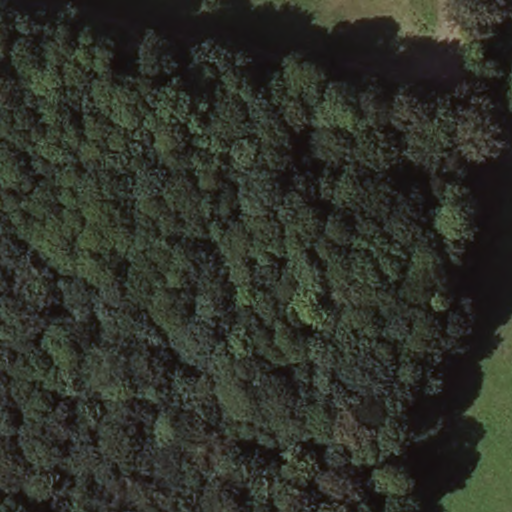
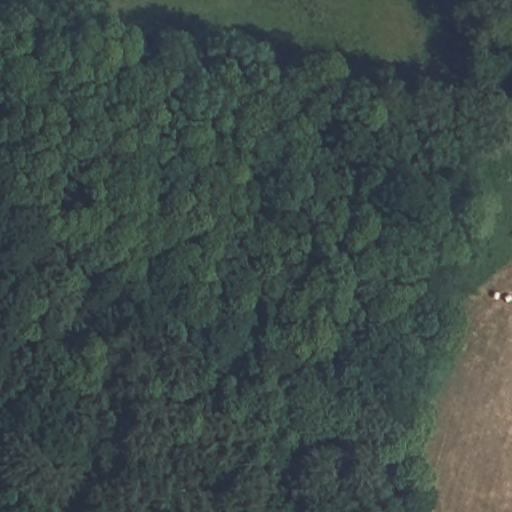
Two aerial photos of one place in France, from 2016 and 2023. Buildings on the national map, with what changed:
unchanged [(504,40),(497,97),(471,94),(477,37),(504,40)]

